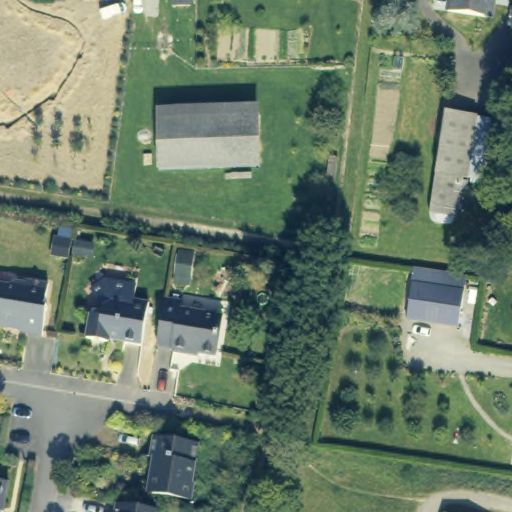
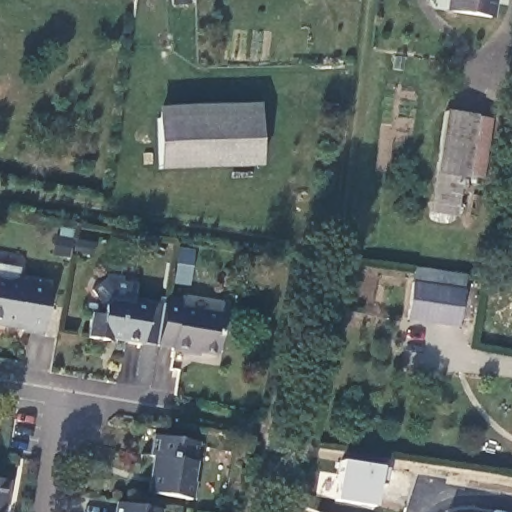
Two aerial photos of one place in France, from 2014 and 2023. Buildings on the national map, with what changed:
unchanged [(495,17),(452,10),(454,0),(498,0),(495,17)]
unchanged [(261,160),(160,167),(157,115),(257,108),(261,160)]
unchanged [(430,210),(446,112),(477,117),(468,176),(461,175),(455,214),(430,210)]
unchanged [(468,284),(462,319),(410,311),(416,276),(468,284)]
unchanged [(26,330),(27,323),(10,320),(10,326),(0,324),(0,281),(16,284),(21,279),(30,281),(31,279),(52,282),(49,303),(52,303),(47,333),(26,330)]
unchanged [(140,287),(137,302),(152,304),(145,346),(114,341),(110,343),(91,340),(95,316),(106,318),(107,309),(95,292),(109,282),(140,287)]
unchanged [(180,302),(179,308),(220,316),(215,357),(187,352),(187,354),(155,347),(164,299),(180,302)]
unchanged [(154,477),(150,471),(152,457),(150,456),(152,435),(195,442),(190,479),(192,481),(190,497),(151,491),(154,477)]
new [(340,460),(389,468),(386,484),(378,483),(374,506),(334,499),(340,460)]
unchanged [(11,481),(7,501),(4,500),(1,512),(0,512),(0,479),(11,481)]
unchanged [(117,512),(119,501),(162,508),(161,512),(117,512)]
new [(501,512),(494,512),(494,511),(501,512)]

